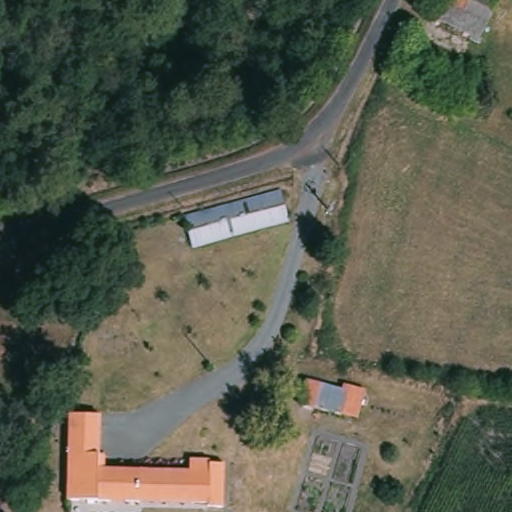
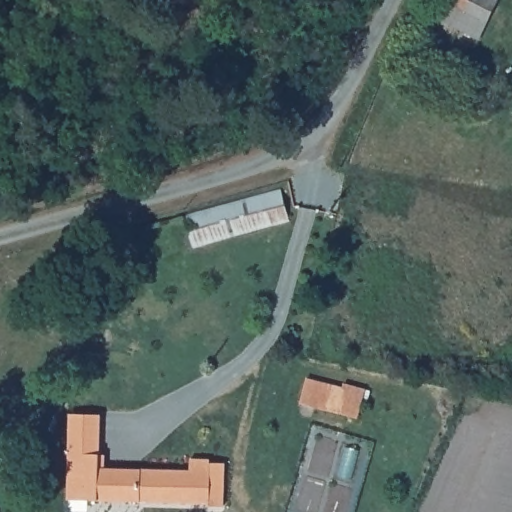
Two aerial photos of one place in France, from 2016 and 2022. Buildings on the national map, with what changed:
unchanged [(435,0),(491,0),(495,2),(474,45),(425,22),(435,0)]
unchanged [(278,197),(286,226),(187,253),(180,223),(278,197)]
unchanged [(360,397),(355,422),(345,420),(336,449),(310,441),(317,413),(293,407),(302,382),(360,397)]
unchanged [(68,414),(99,414),(98,467),(190,471),(190,458),(210,459),(210,464),(225,464),(222,506),(209,506),(209,504),(66,501),(68,414)]

